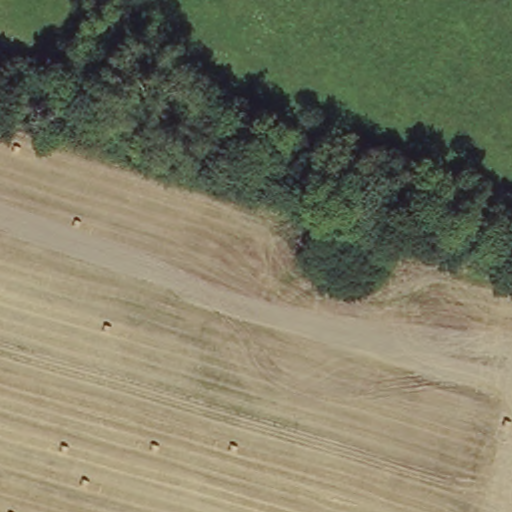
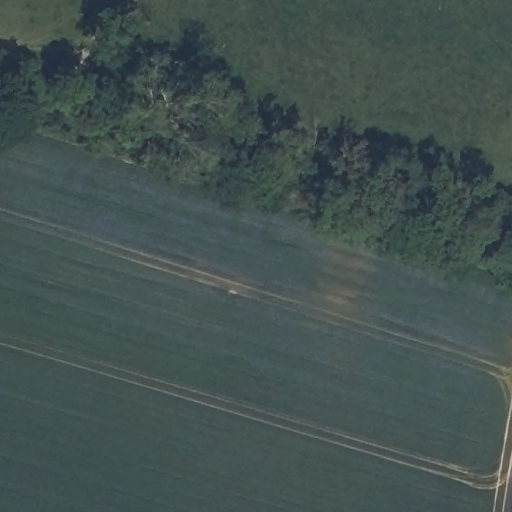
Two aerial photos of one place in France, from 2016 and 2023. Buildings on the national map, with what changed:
unchanged [(69,57),(59,93),(16,80),(24,47),(69,57)]

